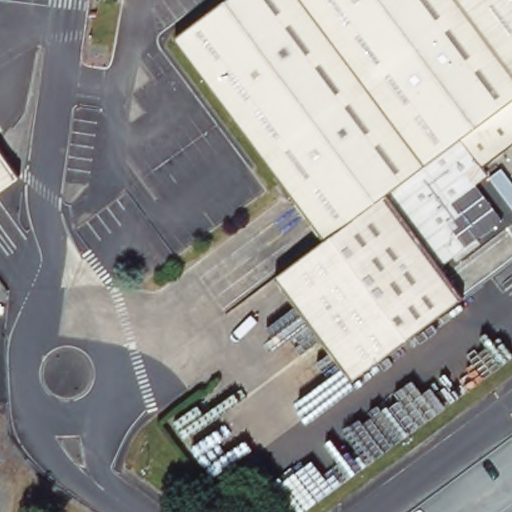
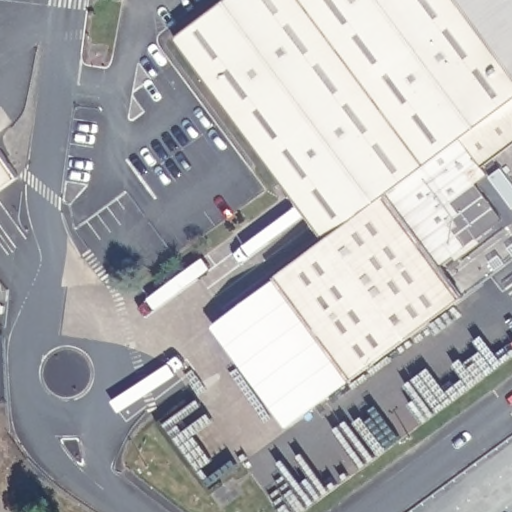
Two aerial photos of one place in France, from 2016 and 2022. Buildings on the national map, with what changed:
unchanged [(485,166),(475,155),(462,164),(497,213),(437,259),(460,291),(345,376),(270,274),(320,232),(178,38),(230,0),(512,0),(512,146),(485,166)]
unchanged [(0,171),(0,141),(14,160),(0,171)]
new [(349,380),(288,426),(213,326),(274,280),(345,376),(349,380)]

